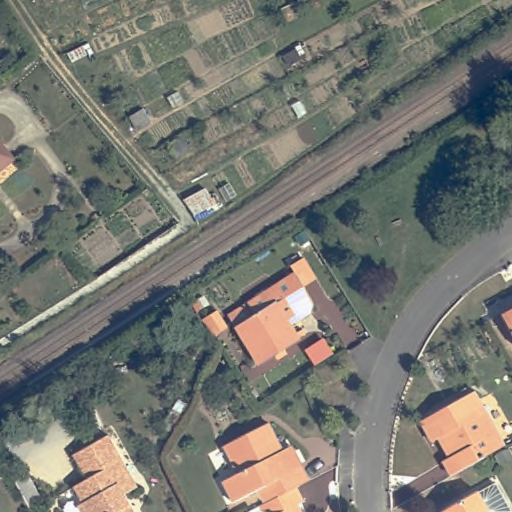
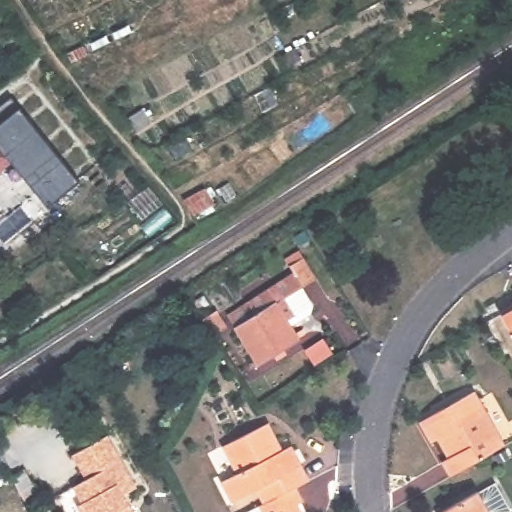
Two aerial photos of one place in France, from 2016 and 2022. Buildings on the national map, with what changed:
new [(47,206),(37,193),(0,224),(0,177),(16,163),(0,144),(0,110),(12,99),(21,106),(80,180),(47,206)]
unchanged [(16,163),(0,177),(0,144),(16,163)]
unchanged [(263,368),(233,319),(297,277),(293,269),(304,262),(317,282),(305,290),(317,307),(315,316),(296,328),(304,341),(263,368)]
unchanged [(512,311),(512,345),(497,319),(512,311)]
unchanged [(441,453),(447,450),(438,433),(431,436),(422,421),(476,390),(507,444),(453,475),(441,453)]
unchanged [(238,507),(228,487),(244,479),(229,449),(275,427),(290,460),(300,456),(312,481),(299,487),(250,512),(247,512),(243,505),(238,507)]
unchanged [(88,500),(82,482),(96,477),(78,451),(114,432),(127,458),(130,464),(141,485),(128,492),(138,512),(87,512),(83,502),(88,500)]
unchanged [(485,494),(501,485),(512,503),(512,512),(451,512),(484,492),(485,494)]
unchanged [(307,503),(300,506),(303,512),(250,512),(299,487),(307,503)]

